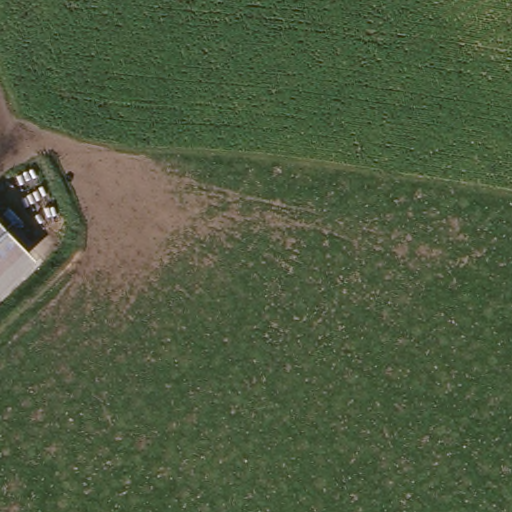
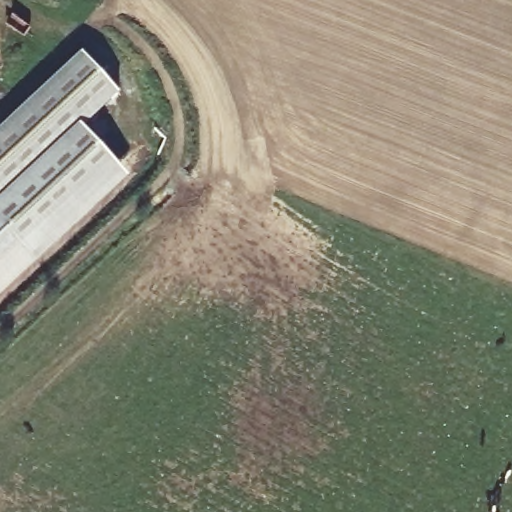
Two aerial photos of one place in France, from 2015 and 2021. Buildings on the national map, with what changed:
new [(119,93),(83,126),(129,176),(36,262),(0,220),(0,131),(83,53),(119,93)]
unchanged [(0,295),(0,220),(36,262),(0,295)]

